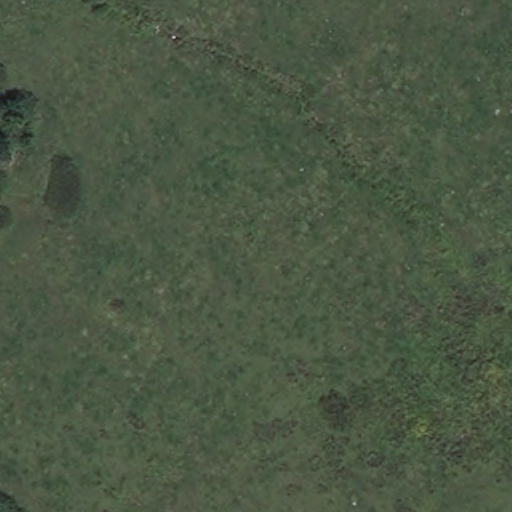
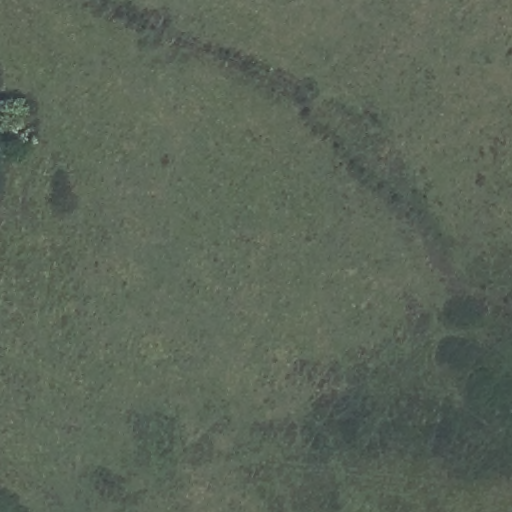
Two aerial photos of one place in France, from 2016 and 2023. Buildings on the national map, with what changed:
unchanged [(32,110),(11,157),(0,152),(0,118),(7,100),(32,110)]

